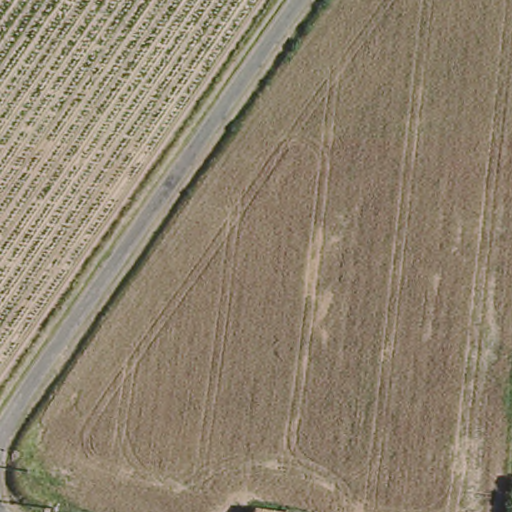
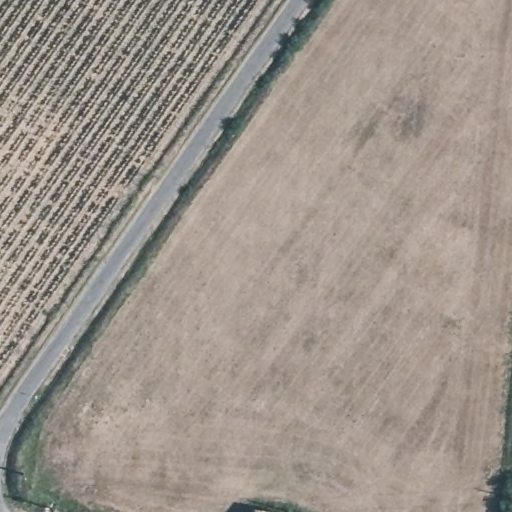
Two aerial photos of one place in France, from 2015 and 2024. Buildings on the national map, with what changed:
unchanged [(256,507),(283,510),(283,512),(255,512),(256,507)]

